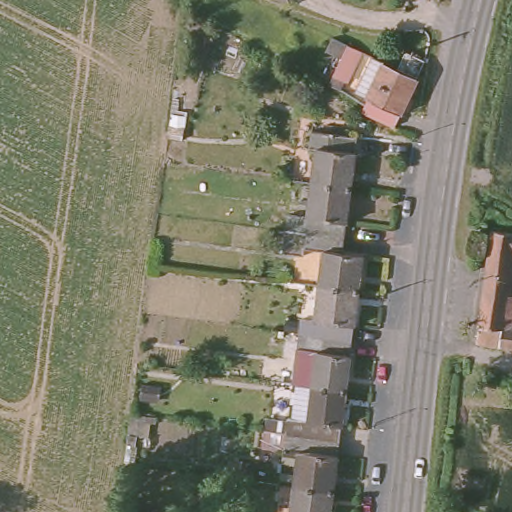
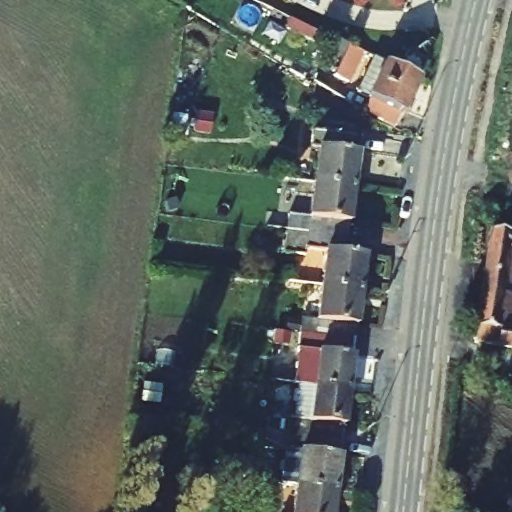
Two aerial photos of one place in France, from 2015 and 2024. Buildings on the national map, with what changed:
unchanged [(332,34),(362,48),(349,77),(335,72),(344,53),(327,45),(332,34)]
unchanged [(364,106),(385,59),(392,62),(397,47),(418,54),(416,72),(396,121),(364,106)]
unchanged [(340,188),(306,184),(311,149),(298,146),(301,126),(347,133),(341,188),(340,188)]
unchanged [(340,188),(341,188),(334,240),(284,234),(286,217),(302,218),(306,184),(340,188)]
unchanged [(502,347),(503,344),(478,341),(492,229),(512,234),(512,269),(504,325),(512,326),(512,349),(502,347)]
unchanged [(334,240),(332,252),(357,255),(352,293),(312,288),(316,251),(282,247),(284,234),(334,240)]
unchanged [(352,293),(345,343),(338,342),(294,336),(296,320),(308,321),(312,288),(352,293)]
unchanged [(338,342),(345,343),(339,393),(304,389),(309,352),(292,350),(294,336),(338,342)]
unchanged [(339,393),(333,440),(299,436),(282,434),(284,421),(300,423),(304,389),(339,393)]
unchanged [(294,451),(265,448),(267,432),(282,434),(299,436),(333,440),(326,494),(289,489),(294,451)]
unchanged [(289,489),(326,494),(324,512),(286,512),(289,489)]

